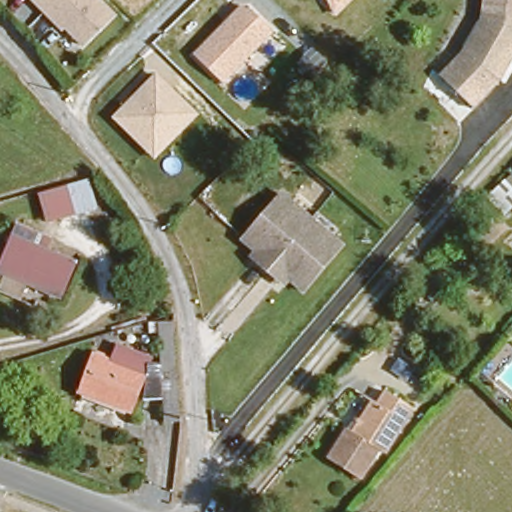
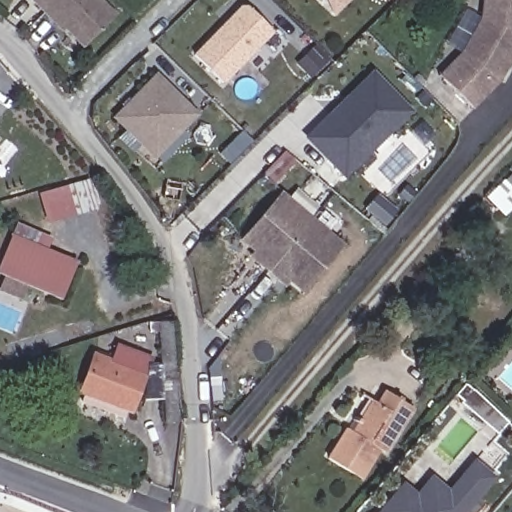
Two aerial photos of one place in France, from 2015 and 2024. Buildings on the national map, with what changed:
unchanged [(117,14),(84,47),(34,0),(103,0),(117,14)]
unchanged [(338,12),(327,2),(329,0),(350,0),(338,12)]
unchanged [(458,51),(475,30),(480,0),(512,0),(512,51),(505,66),(470,105),(450,87),(440,76),(458,51)]
unchanged [(275,31),(225,82),(194,54),(244,2),(275,31)]
unchanged [(200,113),(156,157),(113,116),(157,71),(200,113)]
new [(350,98),(376,72),(409,106),(413,110),(373,149),(347,174),(331,157),(311,136),(350,98)]
new [(0,162),(0,154),(4,157),(0,162)]
unchanged [(91,165),(103,206),(48,220),(37,185),(91,165)]
unchanged [(317,222),(343,246),(301,290),(300,288),(284,273),(287,270),(289,268),(280,259),(267,246),(261,252),(244,235),(285,191),(317,222)]
unchanged [(10,220),(11,214),(18,217),(31,224),(47,232),(40,245),(65,260),(47,292),(31,285),(13,275),(6,288),(0,286),(0,238),(6,226),(10,220)]
unchanged [(181,420),(165,422),(151,318),(167,313),(181,420)]
unchanged [(117,355),(119,351),(148,365),(124,412),(80,388),(101,347),(117,355)]
unchanged [(351,422),(373,396),(380,402),(392,387),(415,406),(383,445),(376,439),(349,472),(321,450),(346,419),(351,422)]
new [(383,512),(404,487),(416,498),(435,476),(452,490),(478,460),(497,475),(467,512),(383,512)]

